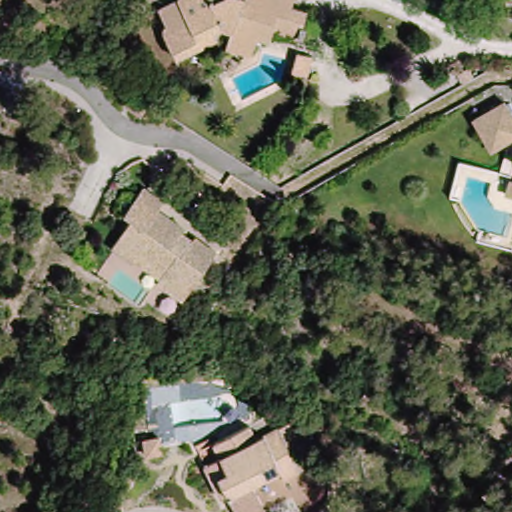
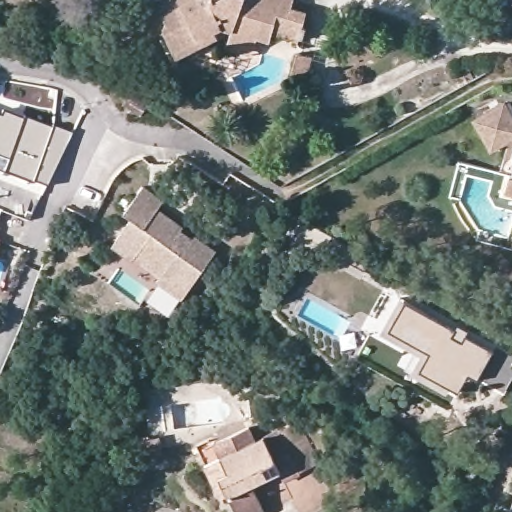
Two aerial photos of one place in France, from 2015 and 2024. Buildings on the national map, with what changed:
unchanged [(226,49),(231,30),(221,27),(199,37),(202,44),(176,56),(164,30),(163,28),(163,26),(164,25),(166,23),(159,7),(174,0),(294,0),(292,7),(307,11),(298,42),(272,34),(269,41),(257,38),(251,57),(226,49)]
unchanged [(307,76),(292,71),(297,53),(313,57),(307,76)]
unchanged [(474,79),(462,85),(457,76),(469,69),(474,79)]
unchanged [(150,95),(144,105),(126,94),(133,83),(150,95)]
unchanged [(512,118),(512,139),(491,150),(474,120),(504,104),(512,118)]
new [(19,117),(48,127),(48,125),(69,133),(41,187),(29,183),(28,185),(0,175),(0,112),(19,119),(19,117)]
unchanged [(505,194),(509,178),(512,179),(512,195),(505,194)]
unchanged [(111,242),(128,217),(124,212),(146,180),(167,199),(162,207),(217,250),(179,290),(111,242)]
new [(325,241),(331,231),(347,240),(369,252),(358,271),(336,258),(341,250),(325,241)]
new [(452,325),(462,330),(490,346),(474,374),(465,369),(454,386),(415,363),(425,346),(385,322),(402,295),(452,325)]
unchanged [(221,463),(214,450),(250,433),(256,446),(300,426),(320,470),(284,486),(279,476),(251,489),(261,512),(234,512),(228,500),(220,504),(205,471),(221,463)]
unchanged [(159,438),(161,453),(146,455),(144,440),(159,438)]

